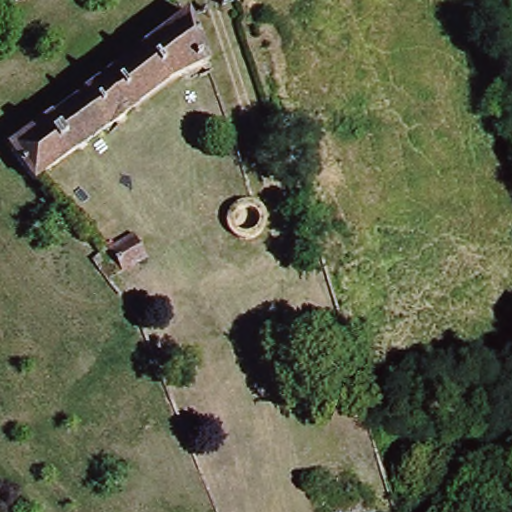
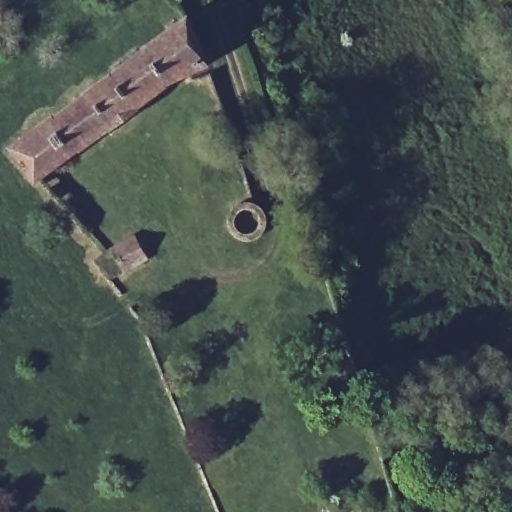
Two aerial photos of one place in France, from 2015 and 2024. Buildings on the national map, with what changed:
unchanged [(180,18),(197,61),(30,186),(1,148),(180,18)]

